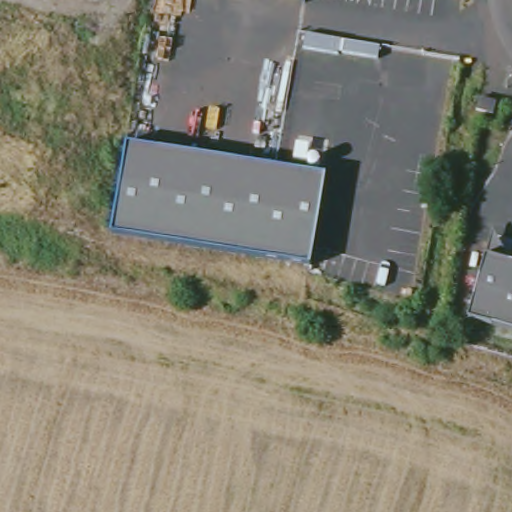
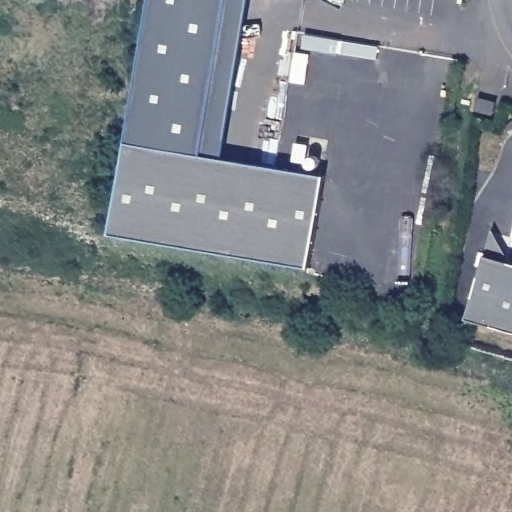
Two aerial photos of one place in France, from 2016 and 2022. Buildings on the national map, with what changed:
new [(126,144),(150,0),(249,0),(223,160),(126,144)]
unchanged [(497,102),(497,103),(494,115),(478,110),(477,110),(479,105),(480,99),(480,98),(497,102)]
unchanged [(253,165),(238,257),(111,236),(124,155),(126,144),(253,165)]
unchanged [(327,177),(312,270),(238,257),(253,165),(327,177)]
unchanged [(499,238),(506,250),(506,256),(512,258),(512,327),(466,315),(487,235),(499,238)]

